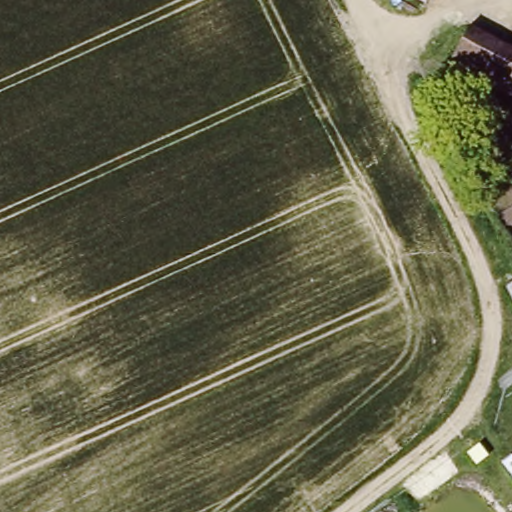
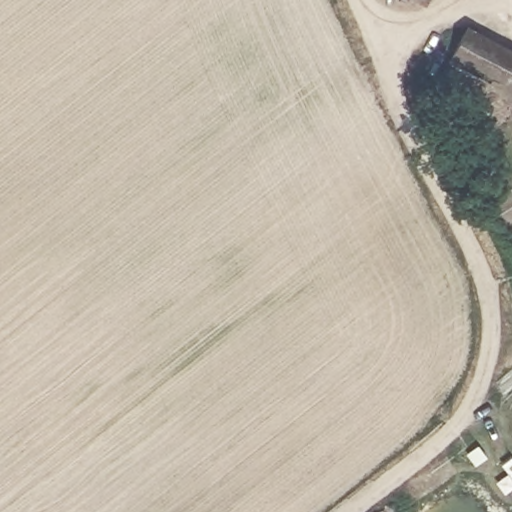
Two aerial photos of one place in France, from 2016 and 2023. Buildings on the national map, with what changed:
unchanged [(512,51),(512,97),(440,65),(449,45),(458,27),(512,51)]

